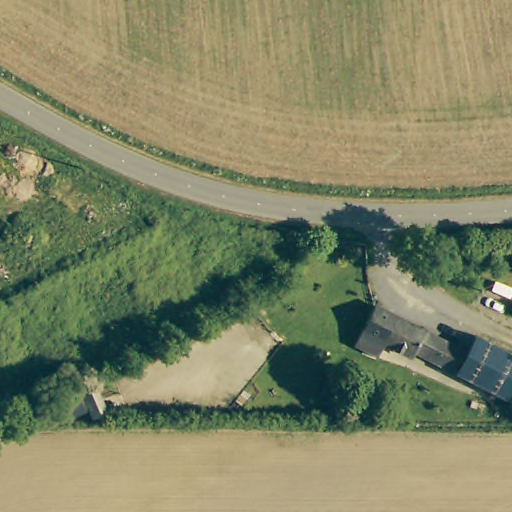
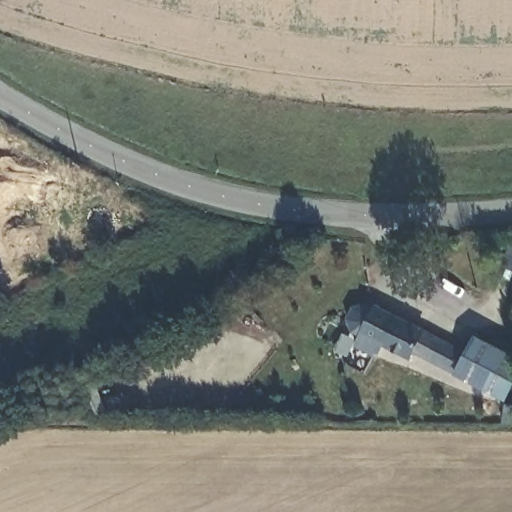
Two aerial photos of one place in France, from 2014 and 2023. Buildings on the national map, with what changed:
unchanged [(499,399),(482,390),(483,388),(416,352),(411,359),(387,346),(381,358),(359,347),(379,308),(398,318),(493,368),(510,377),(499,399)]

